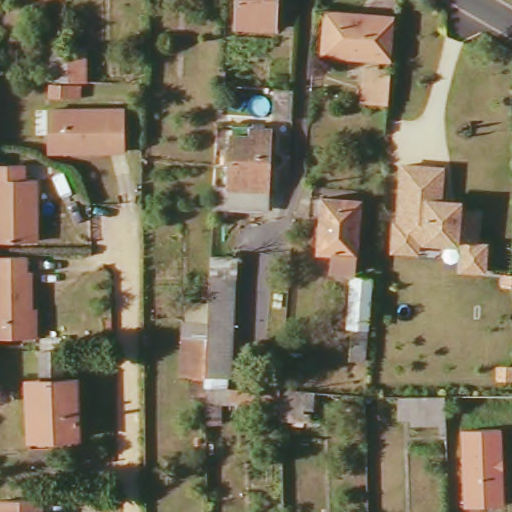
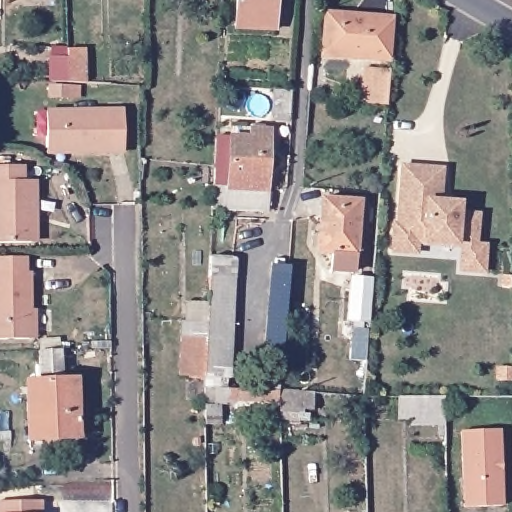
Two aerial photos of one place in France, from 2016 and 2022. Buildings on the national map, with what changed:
unchanged [(271,0),(270,24),(231,22),(232,0),(271,0)]
unchanged [(321,14),(336,16),(336,19),(372,22),(373,19),(388,19),(385,60),(346,57),(346,52),(318,50),(321,14)]
unchanged [(62,55),(62,47),(78,47),(78,81),(62,81),(45,80),(45,56),(62,55)]
unchanged [(363,84),(388,86),(387,105),(361,103),(363,84)]
unchanged [(42,145),(42,110),(120,109),(120,150),(67,150),(42,150),(42,145)]
unchanged [(231,117),(250,118),(251,110),(270,110),(266,190),(213,187),(214,167),(229,169),(231,117)]
unchanged [(388,220),(393,221),(398,162),(442,167),(440,200),(460,200),(458,212),(477,213),(475,245),(486,246),(484,273),(455,271),(457,246),(455,246),(420,244),(417,255),(385,252),(388,220)]
unchanged [(22,165),(22,178),(36,179),(36,210),(31,210),(31,240),(0,240),(0,164),(22,165)]
unchanged [(318,199),(355,201),(350,255),(313,252),(318,199)]
unchanged [(35,336),(30,336),(0,336),(0,255),(25,255),(25,270),(30,270),(30,308),(35,308),(35,336)]
unchanged [(202,425),(200,376),(173,380),(176,320),(205,318),(205,274),(231,278),(226,388),(257,388),(258,358),(279,359),(280,391),(313,395),(310,409),(236,406),(235,424),(202,425)]
unchanged [(347,278),(365,280),(363,321),(344,320),(347,278)]
unchanged [(347,328),(362,330),(360,360),(345,358),(347,328)]
unchanged [(26,384),(40,383),(40,355),(61,355),(62,382),(76,382),(78,440),(29,442),(26,384)]
unchanged [(395,396),(441,395),(441,415),(395,415),(395,396)]
unchanged [(458,431),(500,430),(502,505),(461,506),(458,431)]
unchanged [(40,501),(40,512),(0,512),(0,501),(40,501)]

